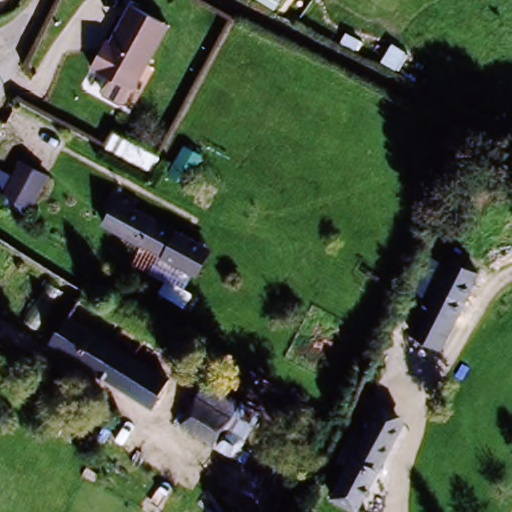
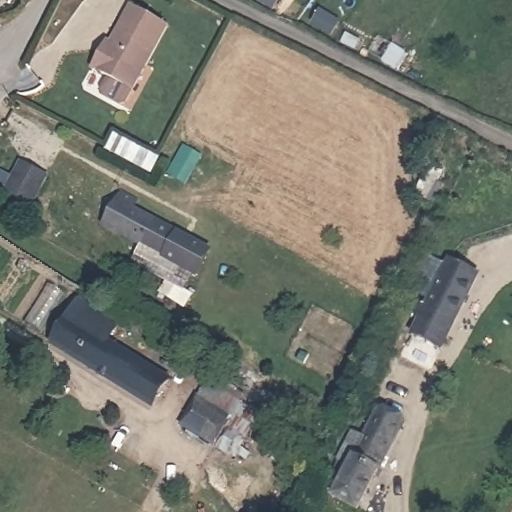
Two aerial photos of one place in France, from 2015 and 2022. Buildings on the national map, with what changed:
unchanged [(278,0),(288,0),(285,5),(278,0)]
unchanged [(130,91),(90,69),(104,44),(108,47),(130,8),(165,28),(130,91)]
unchanged [(156,155),(150,168),(106,146),(114,134),(156,155)]
unchanged [(52,172),(35,205),(0,186),(0,176),(5,166),(17,173),(24,157),(52,172)]
unchanged [(190,272),(101,222),(117,192),(132,200),(128,208),(202,248),(205,249),(194,273),(190,272)]
unchanged [(480,270),(450,327),(418,309),(427,293),(430,295),(452,254),(480,270)]
unchanged [(80,309),(104,324),(97,337),(172,384),(155,411),(55,349),(80,309)]
unchanged [(180,424),(207,382),(259,414),(232,458),(180,424)]
unchanged [(342,449),(352,429),(364,435),(377,407),(404,420),(360,506),(332,492),(350,454),(342,449)]

